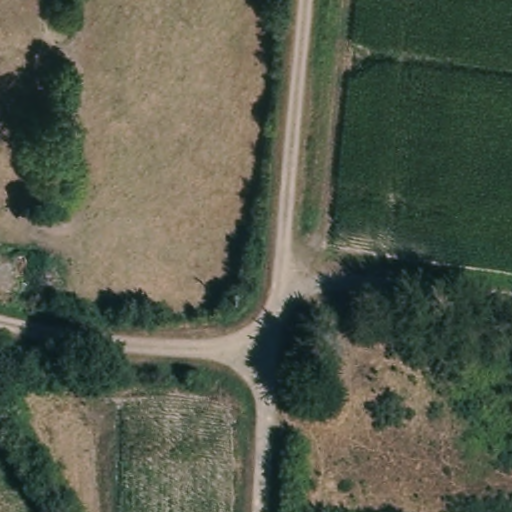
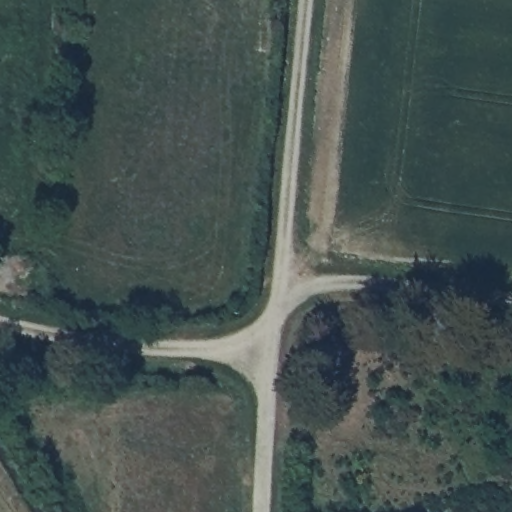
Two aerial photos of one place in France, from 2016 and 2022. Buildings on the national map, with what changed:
[]

